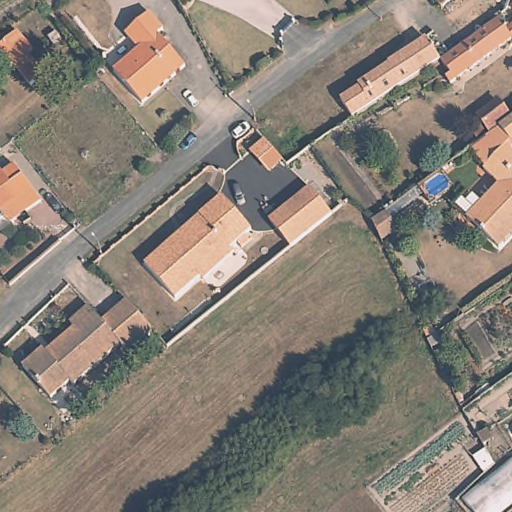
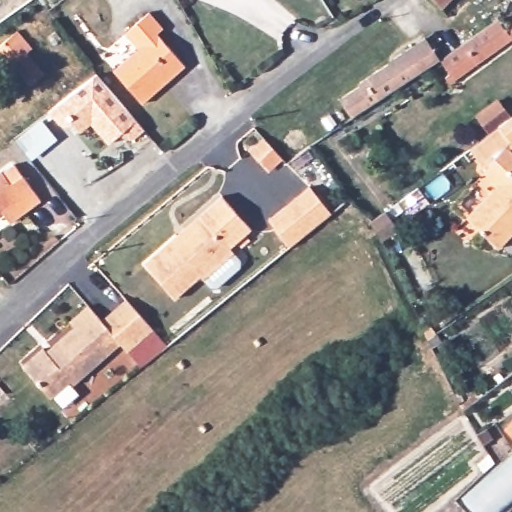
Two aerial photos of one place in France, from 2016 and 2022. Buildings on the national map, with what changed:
unchanged [(453,0),(442,11),(432,0),(453,0)]
unchanged [(140,53),(127,37),(154,13),(168,30),(162,35),(190,66),(147,103),(119,72),(140,53)]
unchanged [(445,79),(451,76),(441,62),(499,21),(507,33),(512,29),(512,42),(450,85),(445,79)]
unchanged [(17,31),(32,49),(27,53),(45,74),(31,86),(14,65),(11,68),(0,55),(0,47),(17,31)]
unchanged [(390,95),(375,73),(417,45),(432,68),(390,95)]
new [(56,104),(95,73),(135,119),(145,130),(129,139),(120,134),(109,145),(91,125),(81,133),(74,125),(69,125),(62,126),(57,123),(47,111),(56,104)]
unchanged [(512,118),(512,146),(499,128),(512,118)]
unchanged [(479,143),(472,134),(483,126),(490,135),(479,143)]
unchanged [(512,154),(512,236),(499,249),(467,220),(499,185),(483,171),(505,148),(512,154)]
unchanged [(6,212),(0,216),(0,177),(7,172),(8,173),(20,165),(46,200),(31,212),(15,224),(6,212)]
unchanged [(335,214),(292,247),(271,219),(313,187),(335,214)]
unchanged [(250,228),(244,233),(249,238),(239,247),(234,242),(227,248),(232,253),(201,280),(198,276),(174,298),(144,264),(170,240),(197,216),(220,195),(250,228)]
unchanged [(153,331),(128,354),(120,346),(74,389),(69,384),(51,400),(22,369),(42,351),(47,356),(54,351),(54,347),(74,329),(70,325),(89,308),(102,323),(126,302),(153,331)]
unchanged [(442,343),(432,350),(430,346),(427,342),(437,336),(442,343)]

